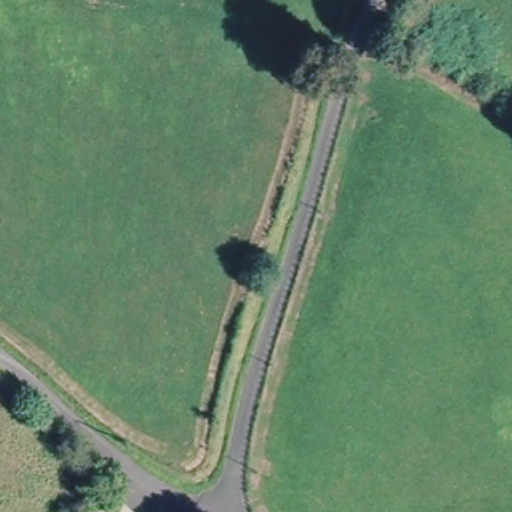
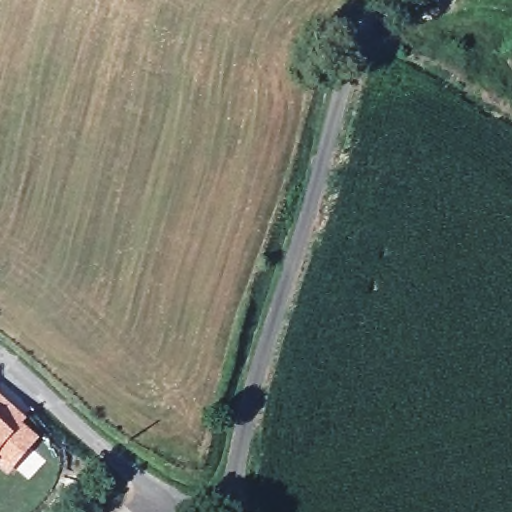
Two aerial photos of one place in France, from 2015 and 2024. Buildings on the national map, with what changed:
new [(23,425),(39,440),(7,477),(0,471),(0,395),(27,421),(23,425)]

